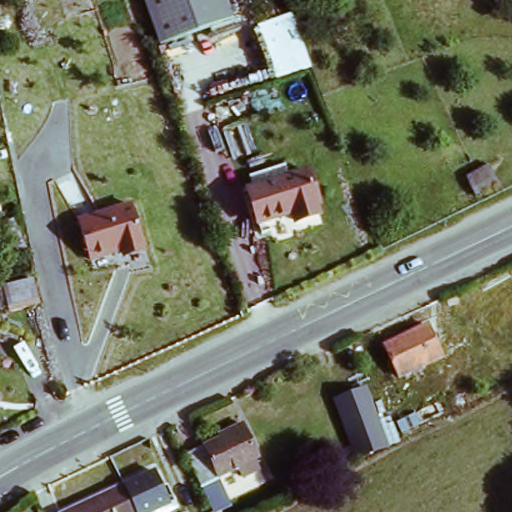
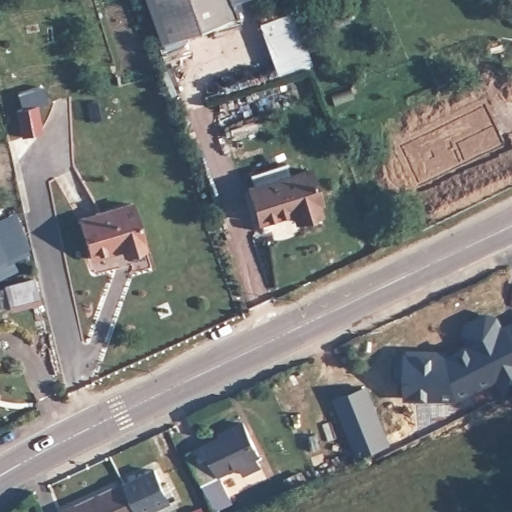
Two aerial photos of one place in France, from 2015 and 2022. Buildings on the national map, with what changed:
unchanged [(226,0),(232,18),(160,43),(144,0),(226,0)]
unchanged [(277,77),(258,24),(293,13),(312,66),(277,77)]
unchanged [(290,206),(259,219),(247,186),(290,171),(303,166),(315,195),(308,199),(312,211),(307,214),(295,219),(290,206)]
unchanged [(75,257),(65,231),(68,227),(84,221),(84,220),(132,202),(147,244),(130,250),(123,246),(96,255),(95,254),(80,260),(75,257)]
new [(15,219),(30,250),(0,264),(0,226),(15,219)]
unchanged [(32,279),(40,301),(14,311),(7,290),(32,279)]
new [(495,387),(455,406),(405,405),(405,351),(448,353),(467,344),(462,334),(465,324),(487,314),(500,315),(506,325),(512,322),(512,402),(505,405),(495,387)]
demolished [(430,316),(447,353),(405,375),(389,335),(430,316)]
demolished [(393,384),(407,377),(417,398),(402,405),(393,384)]
unchanged [(389,447),(355,459),(333,403),(367,389),(389,447)]
unchanged [(243,475),(239,466),(217,477),(222,488),(208,498),(190,455),(215,441),(213,433),(243,420),(265,466),(243,475)]
unchanged [(125,487),(156,473),(172,506),(159,512),(139,512),(125,487)]
unchanged [(122,481),(125,487),(139,512),(57,512),(122,481)]

